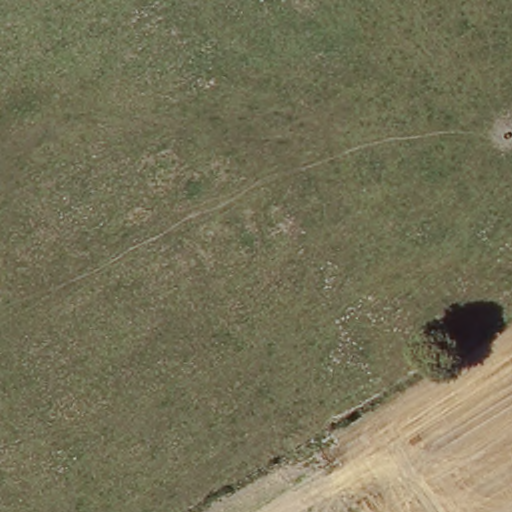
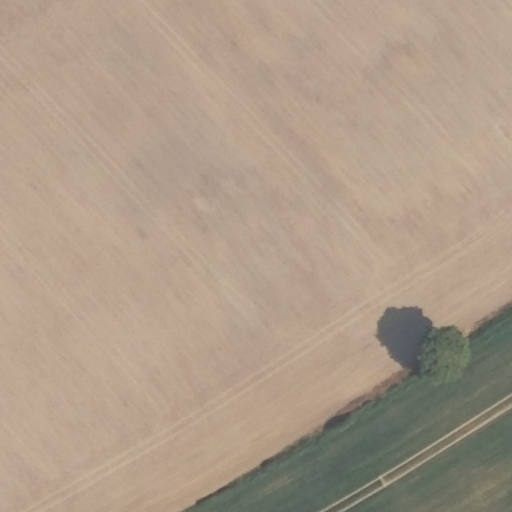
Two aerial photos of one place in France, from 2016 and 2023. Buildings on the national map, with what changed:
[]

